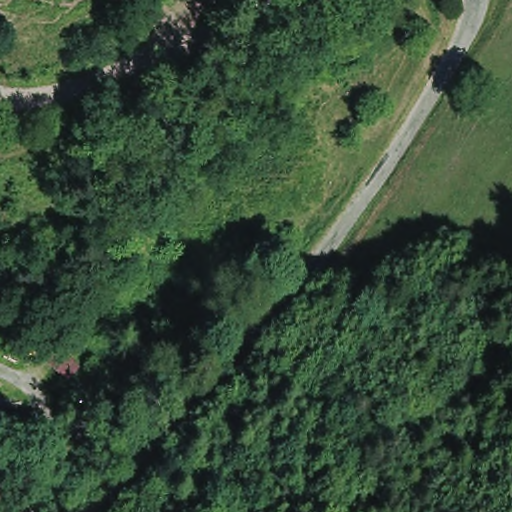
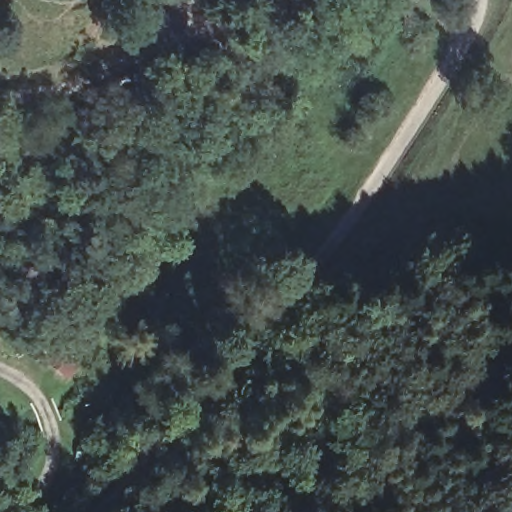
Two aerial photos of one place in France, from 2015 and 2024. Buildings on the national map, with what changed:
unchanged [(47,323),(77,363),(54,379),(26,345),(47,323)]

